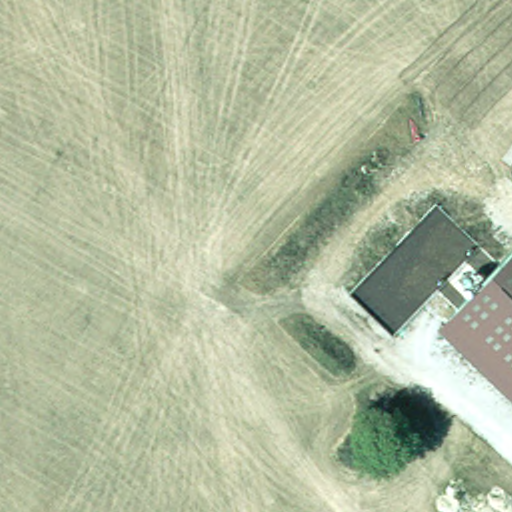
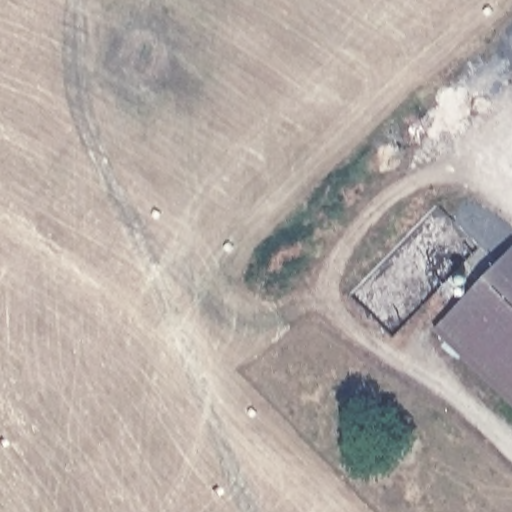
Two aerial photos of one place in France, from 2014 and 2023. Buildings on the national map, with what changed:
unchanged [(512,251),(512,384),(445,319),(512,251)]

